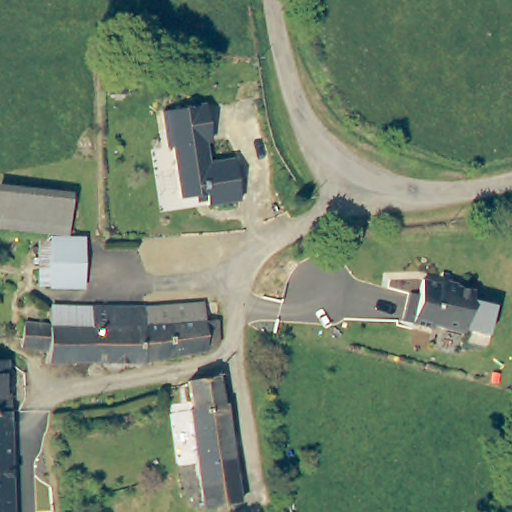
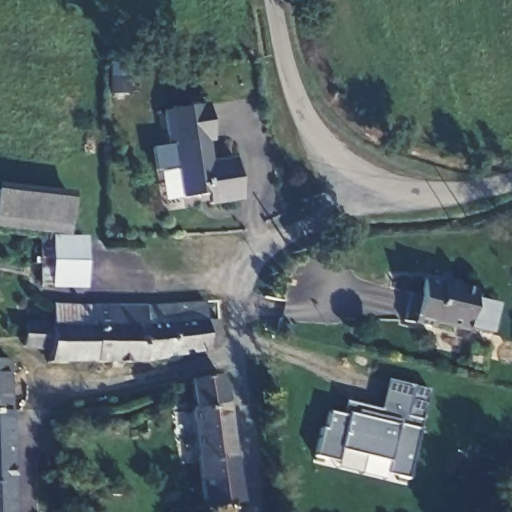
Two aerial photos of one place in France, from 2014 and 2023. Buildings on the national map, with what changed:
unchanged [(168,110),(204,105),(211,142),(204,143),(208,161),(232,157),(238,201),(205,207),(204,201),(194,202),(194,197),(179,200),(170,147),(165,148),(160,112),(168,110)]
unchanged [(67,240),(0,232),(0,196),(70,205),(67,240)]
unchanged [(53,247),(53,243),(81,244),(81,291),(43,290),(41,247),(53,247)]
unchanged [(464,331),(434,323),(432,328),(404,321),(410,292),(419,294),(423,278),(474,292),(464,331)]
unchanged [(204,301),(208,321),(219,320),(222,347),(149,360),(143,306),(145,306),(204,301)]
unchanged [(143,306),(149,360),(47,362),(46,349),(22,347),(23,308),(143,306)]
unchanged [(5,360),(7,412),(0,412),(0,358),(1,357),(5,360)]
unchanged [(193,409),(189,382),(220,375),(224,403),(228,402),(241,502),(204,510),(188,410),(193,409)]
new [(387,461),(336,448),(333,461),(313,457),(319,430),(323,430),(327,413),(339,416),(343,402),(379,410),(386,381),(426,391),(416,428),(405,477),(385,473),(387,461)]
unchanged [(9,484),(0,484),(0,412),(7,412),(9,484)]
unchanged [(11,512),(0,512),(0,484),(9,484),(11,512)]
demolished [(29,512),(27,491),(35,490),(54,488),(55,512),(29,512)]

